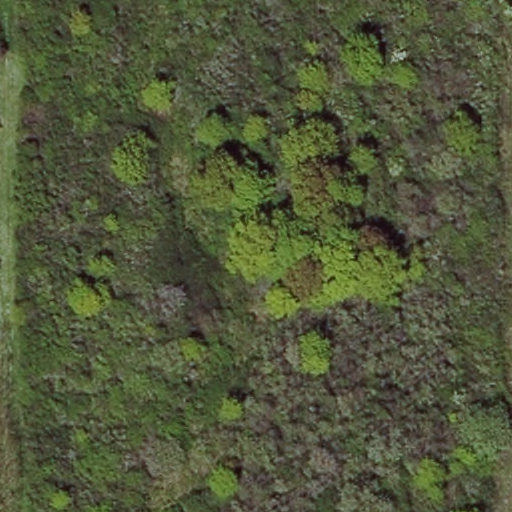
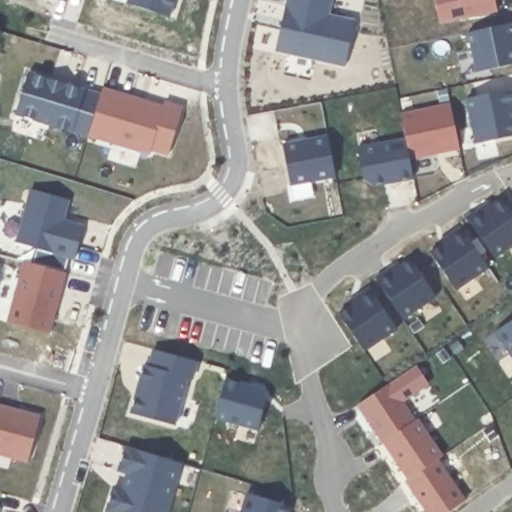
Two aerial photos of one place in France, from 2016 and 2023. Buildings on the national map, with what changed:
new [(168,14),(126,1),(126,0),(173,0),(168,14)]
new [(329,13),(355,19),(342,66),(275,51),(287,0),(332,0),(329,13)]
new [(495,12),(439,23),(435,0),(493,0),(495,12)]
new [(512,25),(512,64),(475,71),(467,32),(512,22),(512,25)]
new [(167,155),(149,149),(149,154),(87,136),(70,130),(15,115),(30,70),(85,88),(100,92),(102,86),(163,105),(164,100),(182,106),(167,155)]
new [(474,144),(464,97),(510,88),(512,95),(512,135),(474,144)]
new [(400,113),(452,103),(460,149),(409,157),(405,138),(400,113)]
new [(289,184),(282,143),(326,135),(334,176),(289,184)]
new [(410,178),(372,185),(362,176),(357,148),(405,138),(409,157),(410,178)]
new [(72,257),(53,253),(52,250),(15,241),(29,188),(70,199),(65,219),(83,224),(72,257)]
new [(494,257),(470,218),(501,198),(512,214),(512,245),(494,257)]
new [(455,289),(430,250),(460,228),(488,268),(455,289)]
new [(402,318),(377,280),(408,258),(435,297),(402,318)]
new [(50,332),(9,322),(25,261),(66,272),(50,332)]
new [(365,351),(337,309),(367,287),(397,329),(365,351)]
new [(494,330),(512,318),(512,359),(494,330)]
new [(193,379),(186,378),(175,424),(129,412),(142,363),(147,365),(152,348),(197,361),(193,379)]
new [(402,401),(414,420),(381,441),(357,405),(417,365),(427,384),(402,401)]
new [(254,443),(235,438),(238,424),(215,418),(225,378),(269,390),(254,443)]
new [(0,455),(0,404),(40,415),(27,462),(0,455)]
new [(105,512),(113,483),(121,486),(125,473),(117,471),(124,445),(182,463),(166,512),(105,512)]
new [(240,512),(246,492),(291,504),(289,512),(240,512)]

